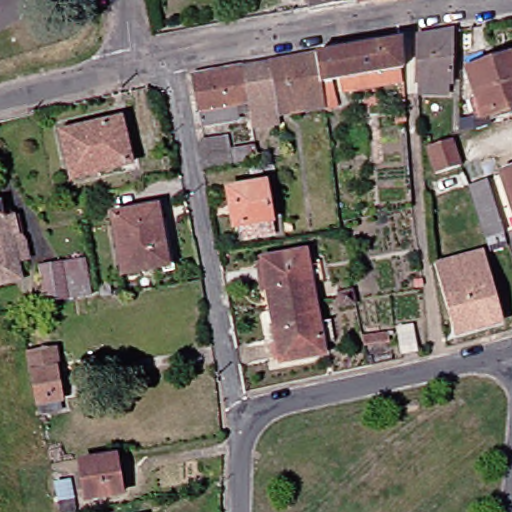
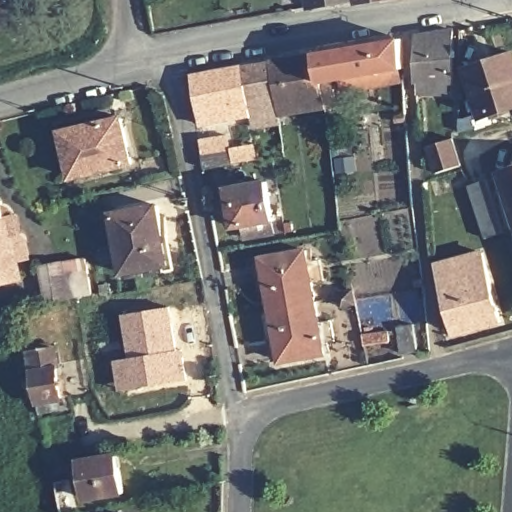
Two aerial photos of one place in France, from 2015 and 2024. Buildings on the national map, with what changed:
unchanged [(316,0),(354,0),(317,6),(316,0)]
unchanged [(423,83),(423,40),(458,35),(458,88),(452,88),(452,99),(437,99),(422,98),(423,83)]
unchanged [(347,78),(327,81),(322,53),(408,37),(409,68),(410,83),(349,93),(347,78)]
unchanged [(327,81),(331,108),(283,115),(274,61),(322,53),(327,81)]
unchanged [(512,108),(484,117),(468,68),(512,54),(512,108)]
unchanged [(283,115),(284,124),(259,128),(255,103),(249,66),(274,61),(283,115)]
unchanged [(255,103),(239,106),(241,119),(209,124),(200,75),(249,66),(255,103)]
unchanged [(406,112),(407,122),(399,123),(398,113),(406,112)]
unchanged [(123,115),(135,164),(73,178),(61,131),(123,115)]
unchanged [(229,134),(231,147),(256,143),(257,147),(259,159),(206,167),(201,139),(229,134)]
unchanged [(454,137),(462,164),(436,172),(428,145),(454,137)]
unchanged [(512,172),(512,192),(506,174),(512,172)]
unchanged [(491,238),(474,185),(493,178),(511,231),(491,238)]
unchanged [(240,227),(234,187),(273,181),(282,180),(289,219),(292,237),(279,239),(276,222),(240,227)]
unchanged [(0,283),(0,201),(5,200),(10,220),(21,218),(25,235),(15,237),(25,277),(16,279),(0,283)]
unchanged [(160,204),(170,266),(124,274),(113,212),(160,204)]
unchanged [(267,257),(312,248),(315,261),(325,259),(328,278),(318,280),(322,301),(276,309),(267,257)]
unchanged [(483,250),(502,321),(458,333),(438,263),(483,250)]
unchanged [(85,259),(91,292),(48,299),(42,266),(85,259)]
unchanged [(357,303),(344,306),(342,296),(341,292),(354,289),(355,293),(357,303)]
unchanged [(326,322),(336,320),(340,341),(329,343),(331,353),(286,362),(276,309),(322,301),(326,322)]
new [(116,360),(131,357),(124,315),(172,306),(179,350),(185,348),(190,379),(121,391),(116,360)]
unchanged [(412,323),(416,352),(402,354),(398,325),(412,323)]
unchanged [(389,330),(391,342),(366,346),(363,334),(389,330)]
unchanged [(40,413),(39,404),(29,363),(27,352),(55,347),(65,400),(62,400),(64,408),(40,413)]
unchanged [(118,452),(124,495),(88,500),(81,459),(118,452)]

